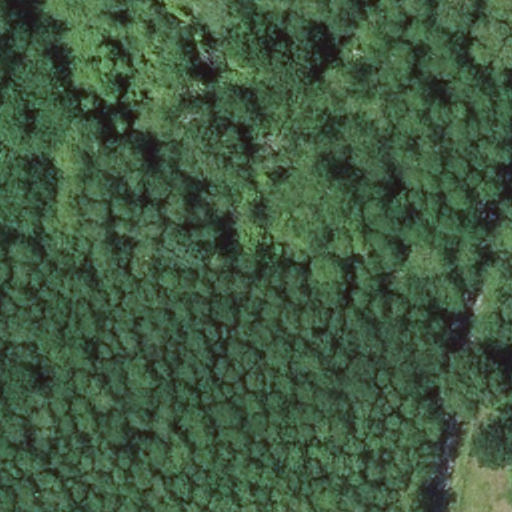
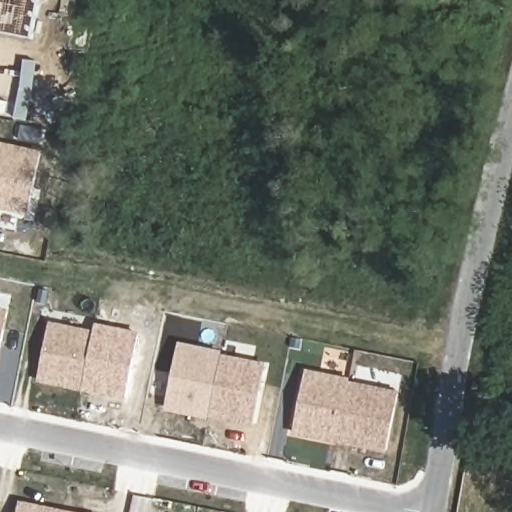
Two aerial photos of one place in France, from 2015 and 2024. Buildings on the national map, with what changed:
new [(0,32),(0,0),(40,0),(31,38),(0,32)]
new [(25,215),(0,210),(0,142),(39,150),(25,215)]
new [(0,350),(0,307),(8,309),(0,350)]
new [(50,322),(94,331),(82,392),(37,382),(43,352),(50,322)]
new [(94,331),(93,331),(95,322),(139,332),(125,399),(82,392),(94,331)]
new [(265,361),(252,428),(207,419),(163,410),(177,344),(265,361)]
new [(351,377),(350,382),(399,391),(385,455),(291,434),(305,368),(351,377)]
new [(20,500),(73,512),(18,512),(20,500)]

